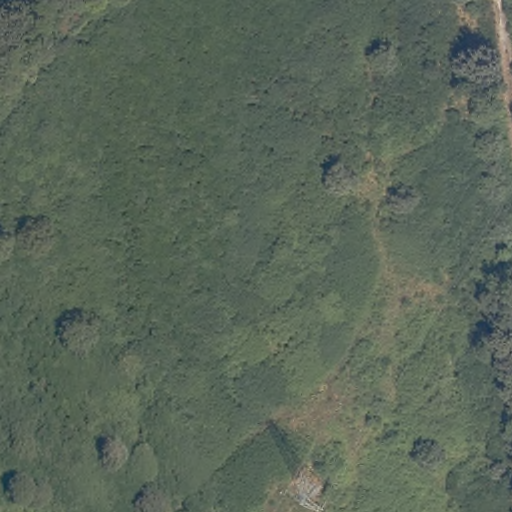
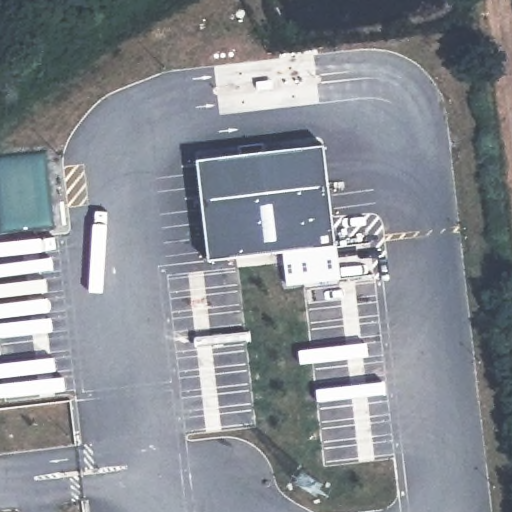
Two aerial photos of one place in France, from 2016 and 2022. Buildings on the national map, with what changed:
new [(339,279),(285,285),(280,252),(206,260),(194,160),(324,145),(334,244),(339,279)]

